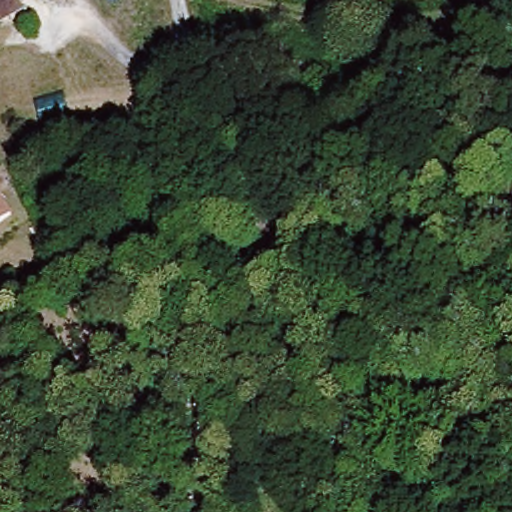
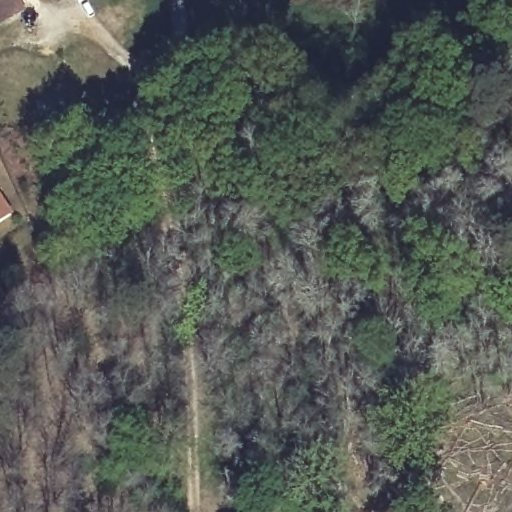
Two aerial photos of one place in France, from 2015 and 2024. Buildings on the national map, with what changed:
unchanged [(23,10),(0,23),(0,0),(18,0),(23,10)]
unchanged [(0,221),(0,200),(10,214),(0,221)]
unchanged [(285,232),(299,268),(271,277),(258,243),(285,232)]

